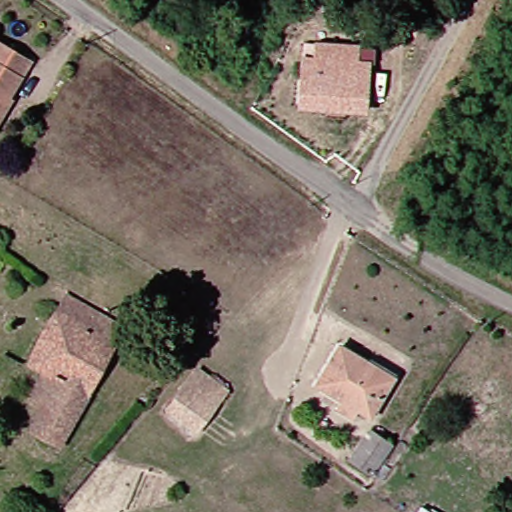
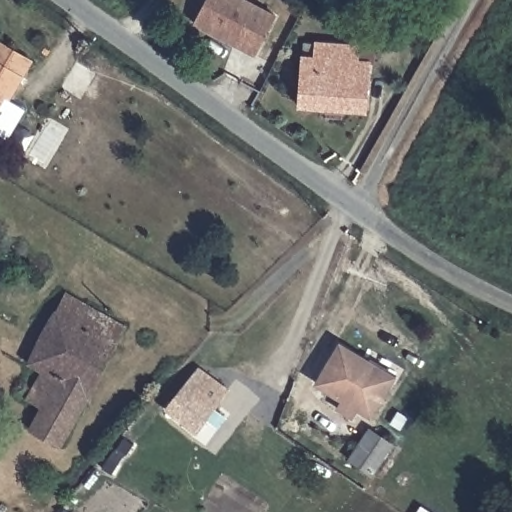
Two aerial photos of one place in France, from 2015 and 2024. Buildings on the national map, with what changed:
new [(254,57),(193,25),(205,0),(248,0),(277,15),(254,57)]
unchanged [(0,42),(24,56),(1,95),(5,96),(0,105),(0,42)]
unchanged [(319,107),(298,105),(302,59),(315,60),(316,45),(356,49),(354,64),(368,65),(364,101),(363,111),(319,107)]
unchanged [(19,430),(32,407),(18,399),(33,371),(18,363),(55,294),(104,321),(115,327),(79,393),(49,446),(19,430)]
unchanged [(334,341),(365,360),(364,362),(387,375),(364,411),(352,404),(346,412),(332,404),(338,395),(312,380),(334,341)]
unchanged [(160,409),(193,370),(221,390),(190,432),(160,409)]
unchanged [(392,445),(371,475),(349,460),(369,430),(392,445)]
unchanged [(421,506),(429,512),(417,512),(421,506)]

